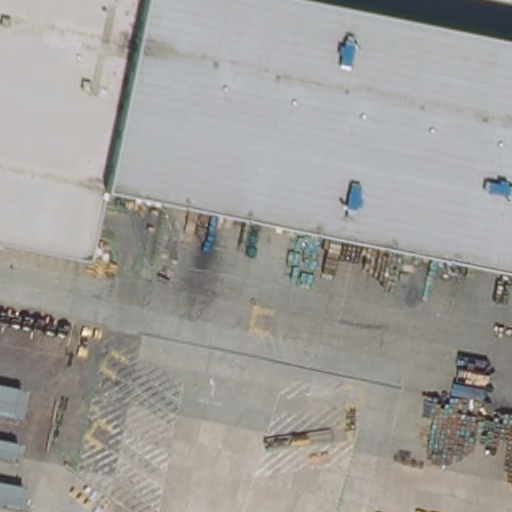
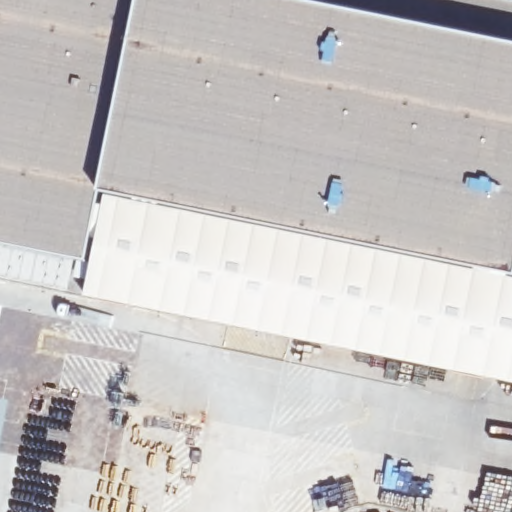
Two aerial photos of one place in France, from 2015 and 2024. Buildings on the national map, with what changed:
unchanged [(103,185),(101,194),(89,256),(0,239),(0,0),(339,0),(512,35),(512,266),(103,185)]
new [(339,0),(512,0),(512,35),(339,0)]
new [(512,275),(512,380),(84,293),(105,193),(512,275)]
new [(0,430),(0,400),(6,401),(0,430)]

